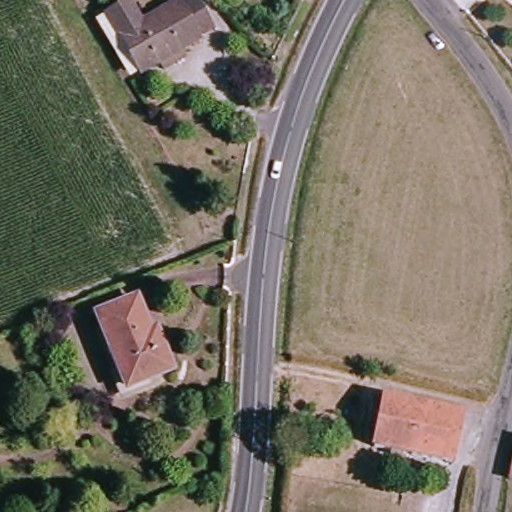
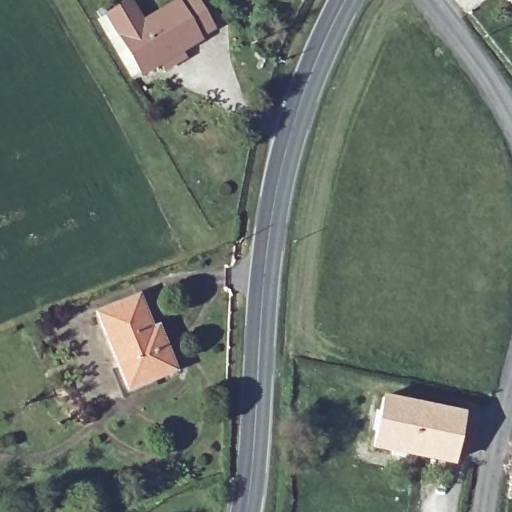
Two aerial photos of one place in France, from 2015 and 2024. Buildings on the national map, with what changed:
unchanged [(175,5),(178,9),(190,0),(194,0),(211,28),(197,38),(200,42),(144,75),(121,38),(116,41),(107,24),(105,18),(128,4),(131,9),(142,27),(175,5)]
unchanged [(146,334),(155,330),(169,369),(125,387),(97,315),(133,300),(146,334)]
unchanged [(459,415),(449,462),(373,447),(382,397),(459,415)]
unchanged [(512,467),(512,484),(508,483),(512,467)]

